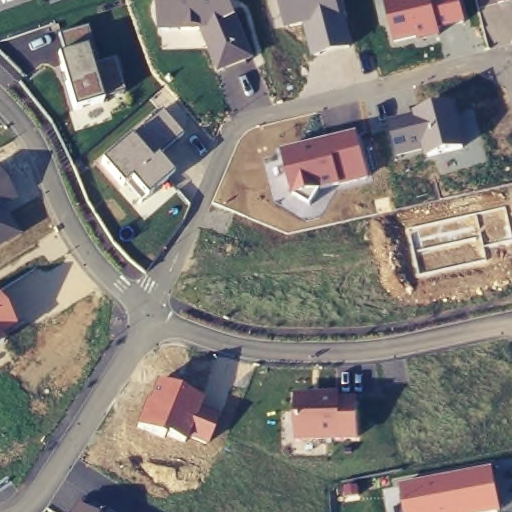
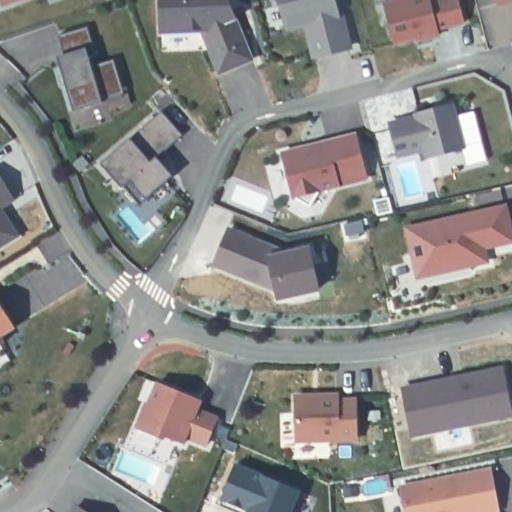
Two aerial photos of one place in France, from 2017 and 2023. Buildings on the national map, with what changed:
unchanged [(2,0),(17,0),(3,5),(2,0)]
unchanged [(218,76),(200,31),(159,34),(158,0),(230,0),(256,60),(218,76)]
unchanged [(340,0),(353,50),(312,60),(304,27),(292,30),(286,31),(279,0),(340,0)]
unchanged [(459,0),(466,24),(455,27),(439,31),(440,39),(417,44),(416,40),(394,45),(383,2),(392,0),(459,0)]
unchanged [(512,0),(512,4),(497,7),(496,0),(512,0)]
unchanged [(59,57),(65,56),(60,36),(88,28),(98,65),(113,61),(117,70),(123,93),(74,112),(59,57)]
unchanged [(404,120),(414,117),(412,112),(453,101),(465,149),(425,160),(422,153),(413,155),(397,159),(390,124),(404,120)]
unchanged [(162,112),(183,135),(157,159),(172,176),(140,205),(102,164),(162,112)]
unchanged [(357,134),(370,180),(320,191),(310,207),(292,200),(280,154),(357,134)]
unchanged [(5,208),(22,237),(0,250),(0,175),(17,201),(5,208)]
unchanged [(505,207),(512,236),(512,240),(484,247),(486,261),(419,277),(408,229),(505,207)]
new [(281,252),(310,245),(320,290),(277,300),(275,288),(213,265),(229,226),(280,247),(281,252)]
unchanged [(2,338),(5,343),(0,346),(0,303),(17,328),(2,338)]
new [(502,369),(512,415),(413,435),(403,389),(502,369)]
unchanged [(145,402),(147,403),(157,381),(203,398),(200,411),(218,417),(207,447),(187,438),(185,444),(167,436),(165,441),(135,427),(145,402)]
unchanged [(295,394),(340,393),(340,400),(358,398),(358,443),(295,443),(295,394)]
new [(235,465),(300,491),(291,512),(234,512),(218,506),(222,499),(235,465)]
unchanged [(492,467),(500,512),(404,512),(400,487),(492,467)]
unchanged [(77,503),(92,512),(72,512),(77,503)]

